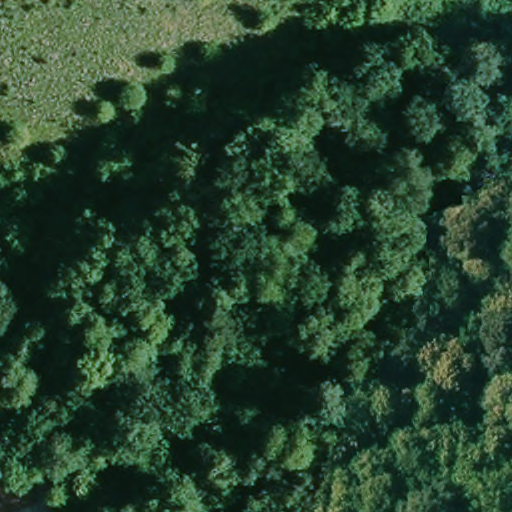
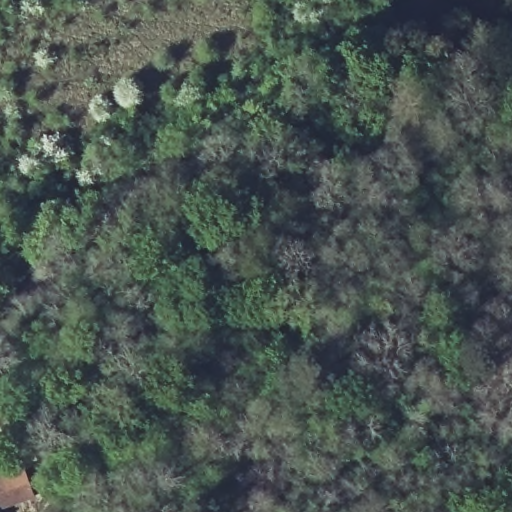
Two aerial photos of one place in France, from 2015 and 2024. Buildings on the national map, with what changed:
unchanged [(35,497),(0,510),(0,478),(24,469),(35,497)]

